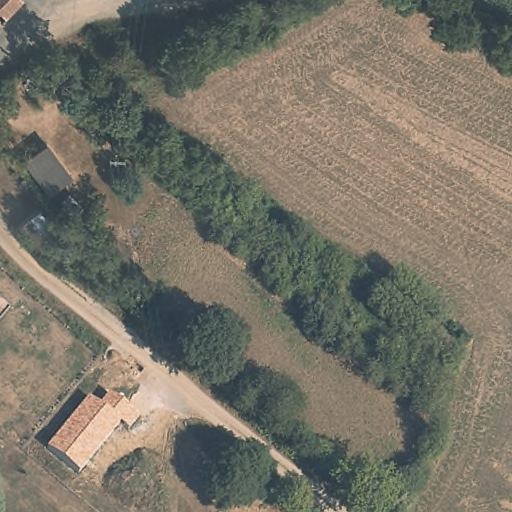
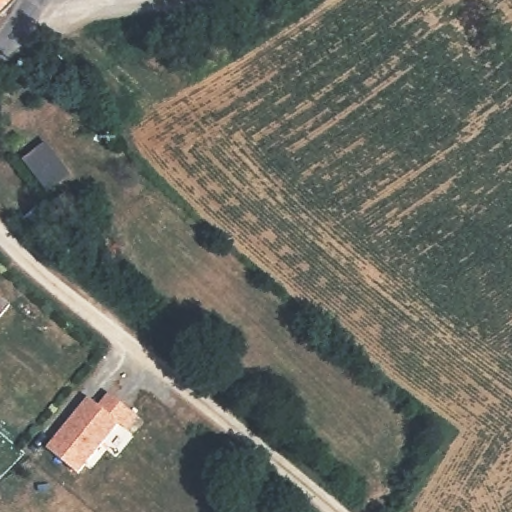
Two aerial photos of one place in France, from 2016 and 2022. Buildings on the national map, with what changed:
unchanged [(0,18),(0,0),(17,0),(0,18)]
unchanged [(47,193),(24,157),(49,137),(74,174),(47,193)]
unchanged [(38,207),(56,227),(35,245),(19,224),(38,207)]
unchanged [(65,232),(93,251),(83,271),(51,252),(65,232)]
unchanged [(86,397),(98,406),(108,393),(138,416),(128,431),(117,424),(78,473),(45,449),(86,397)]

